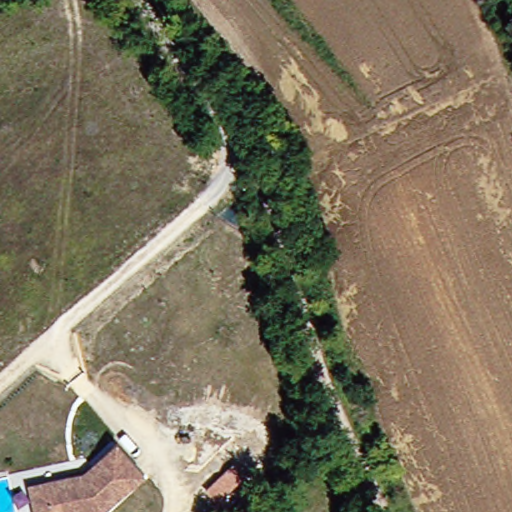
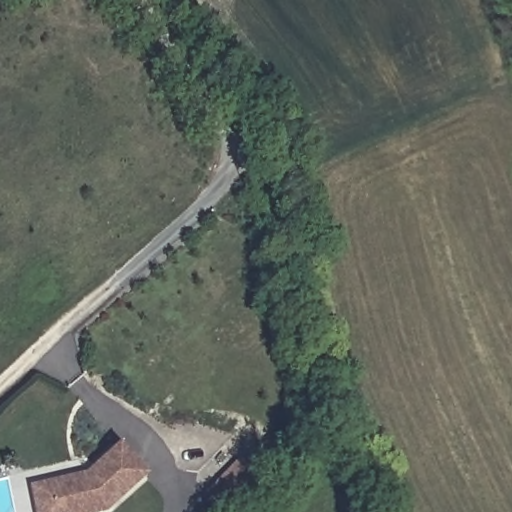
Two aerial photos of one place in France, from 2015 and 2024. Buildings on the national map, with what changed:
unchanged [(38,485),(52,481),(78,475),(115,451),(138,485),(101,512),(44,512),(38,485)]
unchanged [(228,470),(247,490),(223,511),(203,493),(228,470)]

